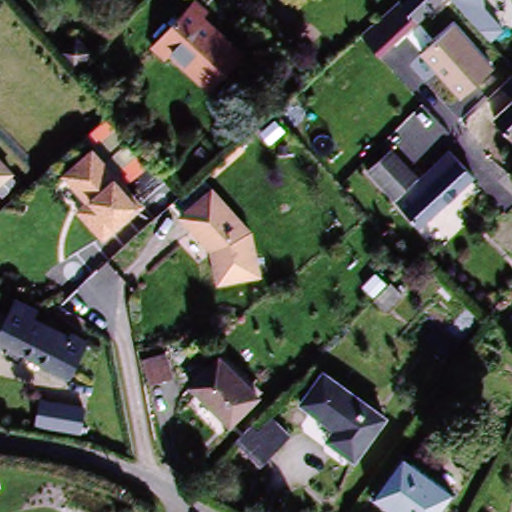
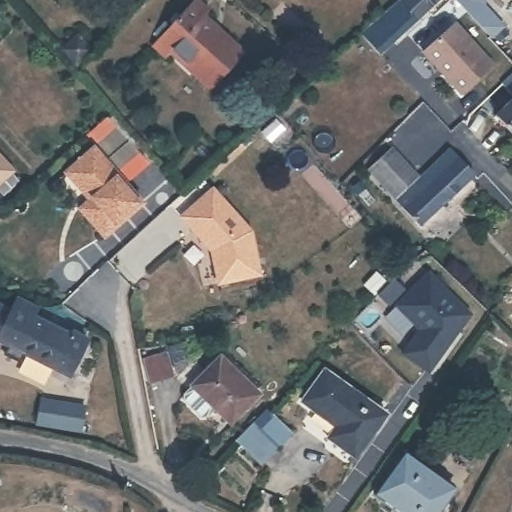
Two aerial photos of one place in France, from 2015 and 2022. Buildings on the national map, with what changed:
unchanged [(185,65),(168,50),(162,55),(151,44),(190,0),(197,0),(206,8),(201,14),(240,50),(212,81),(207,86),(185,65)]
unchanged [(362,29),(372,20),(394,0),(401,0),(402,0),(433,0),(416,16),(391,40),(381,49),(362,29)]
unchanged [(486,6),(503,27),(492,40),(459,0),(485,0),(486,6)]
unchanged [(422,53),(455,24),(495,67),(461,99),(422,53)]
unchanged [(77,71),(61,55),(77,40),(92,56),(77,71)]
unchanged [(512,79),(512,103),(500,91),(512,79)]
unchanged [(512,107),(512,132),(500,119),(512,107)]
unchanged [(147,203),(108,235),(85,206),(95,198),(72,170),(101,146),(147,203)]
unchanged [(17,169),(0,182),(0,147),(17,169)]
unchanged [(407,215),(402,210),(394,201),(396,199),(368,169),(392,148),(420,179),(425,174),(448,151),(457,160),(474,177),(431,217),(420,227),(407,215)]
unchanged [(187,219),(217,189),(257,229),(270,270),(229,282),(220,251),(187,219)]
new [(428,373),(400,353),(417,329),(394,305),(427,271),(471,315),(428,373)]
demolished [(383,293),(386,290),(393,282),(399,277),(412,290),(396,307),(382,294),(383,293)]
unchanged [(12,348),(7,357),(0,353),(0,308),(11,313),(18,298),(42,310),(37,318),(72,335),(74,332),(91,341),(72,379),(12,348)]
unchanged [(155,385),(148,361),(172,354),(179,378),(155,385)]
unchanged [(235,419),(197,388),(224,357),(264,392),(251,407),(238,422),(235,419)]
unchanged [(389,416),(356,456),(330,434),(338,424),(306,397),(331,367),(389,416)]
unchanged [(79,425),(39,417),(41,404),(42,398),(47,399),(47,405),(81,412),(79,425)]
unchanged [(251,428),(259,420),(266,427),(277,414),(297,432),(268,462),(242,437),(251,428)]
unchanged [(438,512),(399,512),(381,500),(410,460),(421,468),(446,485),(453,491),(438,512)]

